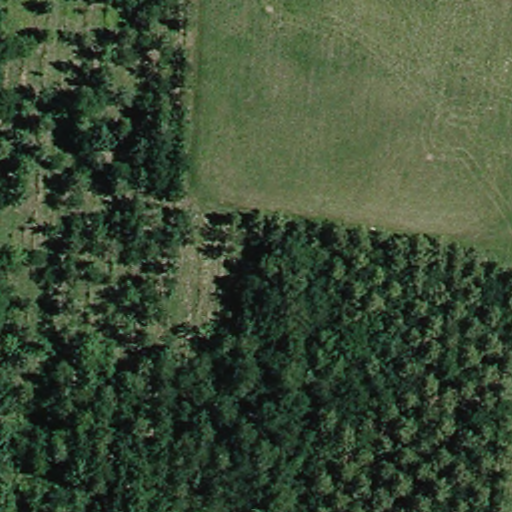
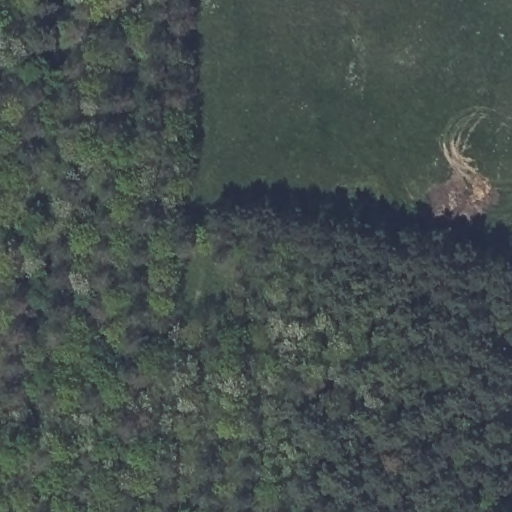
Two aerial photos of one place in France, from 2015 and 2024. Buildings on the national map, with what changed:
[]

